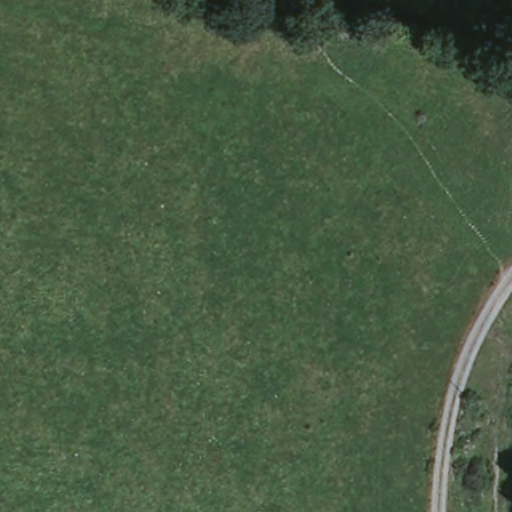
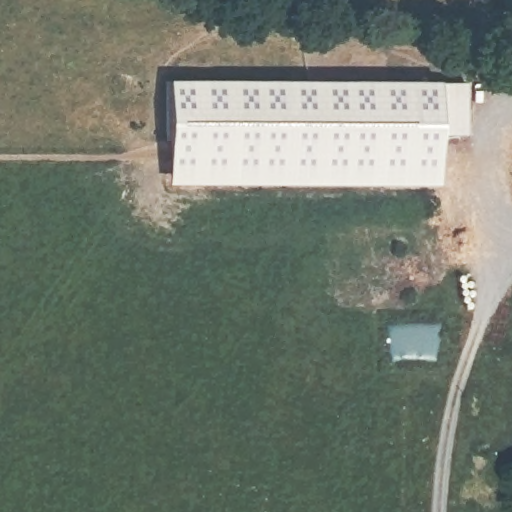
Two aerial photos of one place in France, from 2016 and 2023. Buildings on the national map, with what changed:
new [(466,86),(466,139),(438,138),(436,189),(165,189),(166,83),(466,86)]

